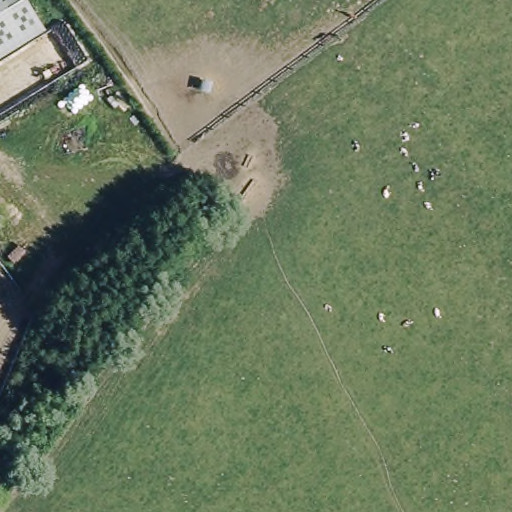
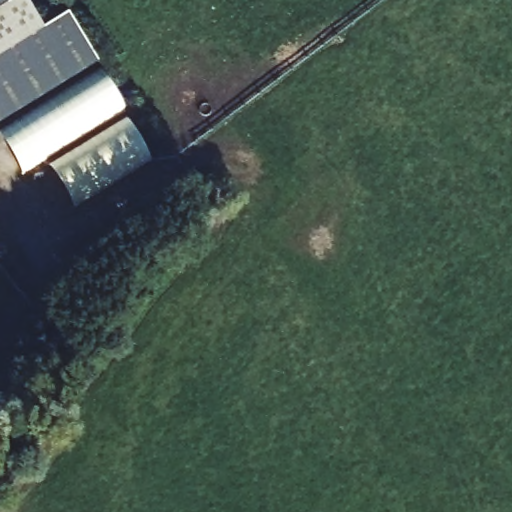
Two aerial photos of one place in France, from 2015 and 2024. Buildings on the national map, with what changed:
unchanged [(43,31),(0,58),(0,0),(22,0),(43,31)]
new [(43,31),(68,15),(98,63),(0,124),(0,58),(43,31)]
new [(99,68),(125,112),(23,176),(0,132),(0,131),(99,68)]
new [(48,170),(126,120),(151,162),(74,210),(48,170)]

